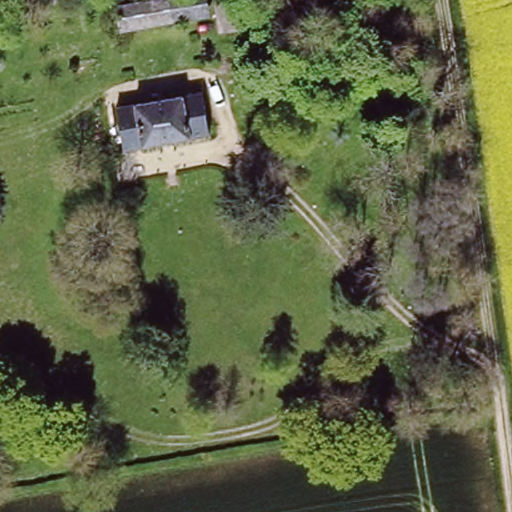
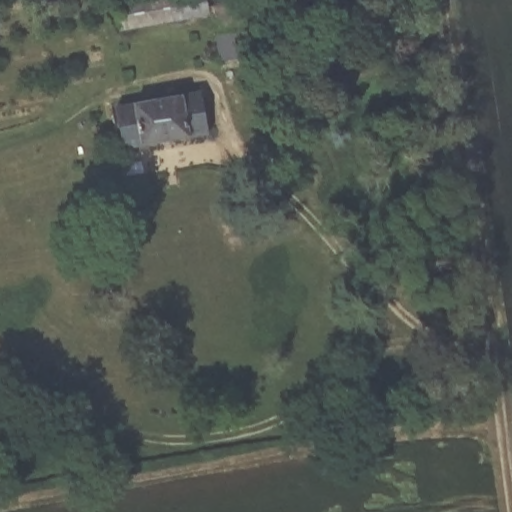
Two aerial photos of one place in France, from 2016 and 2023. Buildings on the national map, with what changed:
unchanged [(85,6),(85,0),(122,0),(122,1),(85,6)]
unchanged [(166,0),(207,0),(209,15),(125,29),(121,8),(166,0)]
unchanged [(227,44),(225,29),(230,28),(227,11),(257,6),(257,10),(279,8),(282,40),(262,45),(261,38),(227,44)]
unchanged [(120,109),(204,95),(210,135),(127,148),(120,109)]

